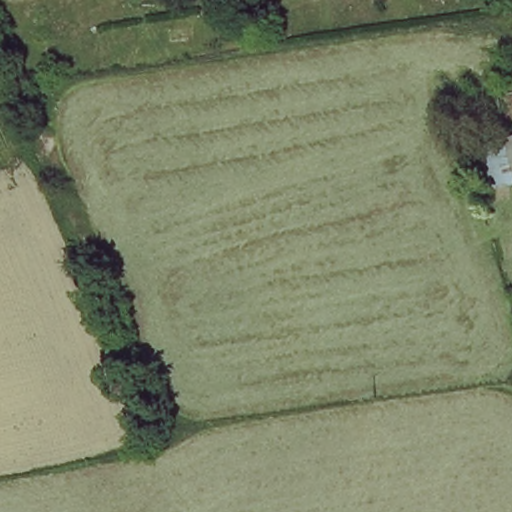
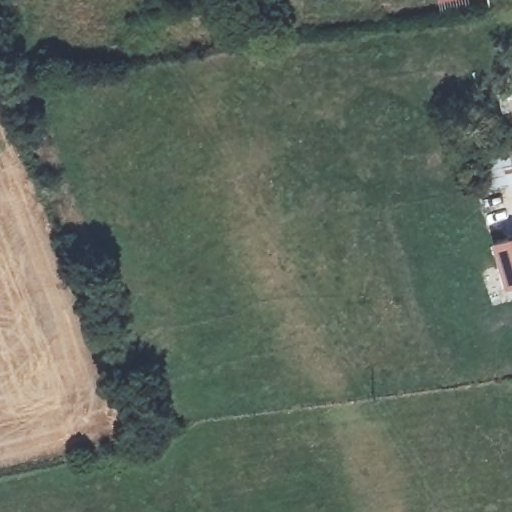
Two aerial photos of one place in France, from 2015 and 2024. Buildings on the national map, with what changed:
unchanged [(512,146),(512,162),(509,147),(512,146)]
new [(512,235),(512,286),(504,288),(489,242),(512,235)]

